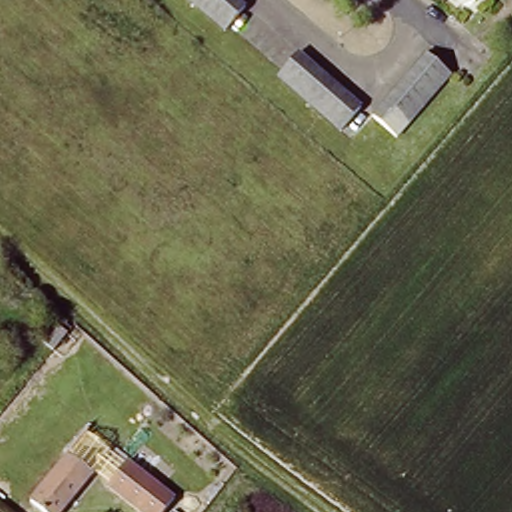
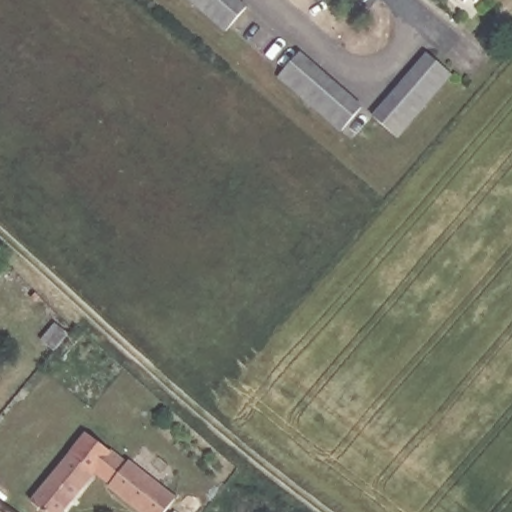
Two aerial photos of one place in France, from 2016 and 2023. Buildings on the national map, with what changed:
unchanged [(188,0),(235,0),(244,8),(225,32),(188,0)]
unchanged [(447,76),(395,135),(372,114),(423,55),(447,76)]
unchanged [(276,76),(296,56),(358,108),(339,131),(276,76)]
unchanged [(43,512),(43,511),(27,499),(75,443),(89,454),(78,466),(92,477),(62,512),(43,512)]
unchanged [(164,512),(140,512),(107,486),(128,459),(176,497),(164,512)]

